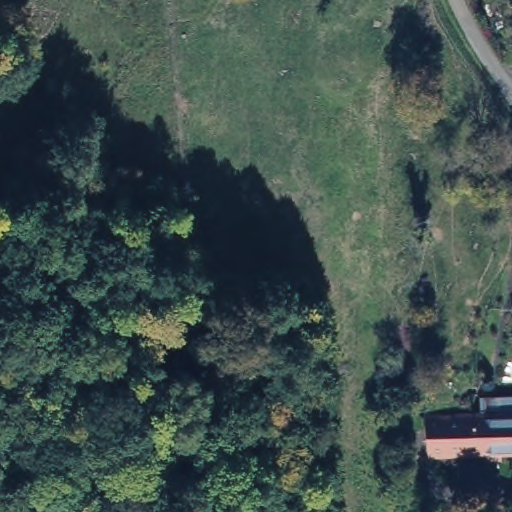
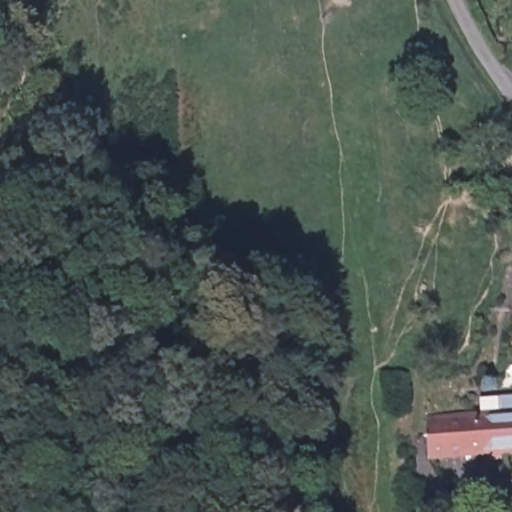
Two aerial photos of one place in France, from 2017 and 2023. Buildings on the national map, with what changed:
unchanged [(512,416),(512,457),(426,453),(427,413),(480,416),(481,405),(500,405),(500,416),(512,416)]

